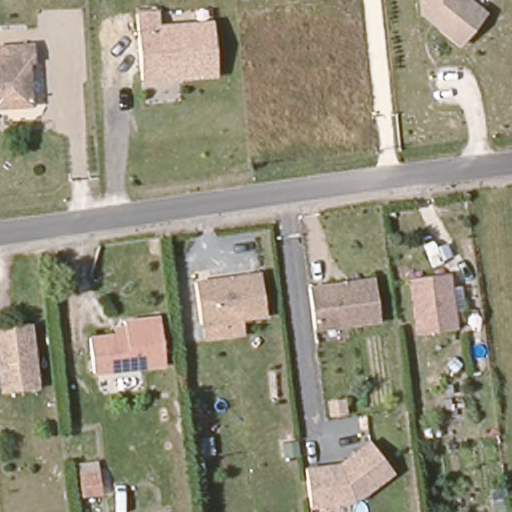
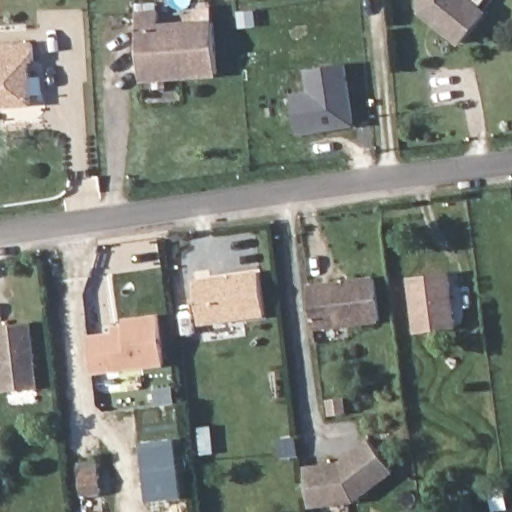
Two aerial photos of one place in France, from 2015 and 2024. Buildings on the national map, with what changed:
unchanged [(416,0),(467,0),(489,18),(465,49),(436,26),(422,15),(418,12),(416,0)]
unchanged [(143,81),(139,15),(161,14),(161,29),(216,26),(219,77),(143,81)]
unchanged [(30,57),(26,58),(29,103),(6,104),(0,105),(0,42),(29,40),(30,57)]
new [(294,95),(310,93),(307,71),(347,66),(356,126),(300,134),(294,95)]
unchanged [(265,313),(200,321),(195,277),(260,269),(265,313)]
unchanged [(454,271),(459,325),(419,329),(414,275),(454,271)]
unchanged [(376,279),(381,320),(315,328),(310,286),(376,279)]
unchanged [(93,339),(130,334),(128,318),(162,313),(168,363),(96,372),(93,339)]
unchanged [(0,384),(0,327),(29,325),(36,390),(1,393),(0,384)]
demolished [(58,433),(97,428),(100,459),(61,464),(58,433)]
new [(151,503),(143,443),(180,439),(187,499),(151,503)]
unchanged [(369,442),(394,474),(355,504),(309,509),(305,468),(339,464),(369,442)]
unchanged [(99,472),(101,491),(81,493),(79,474),(99,472)]

